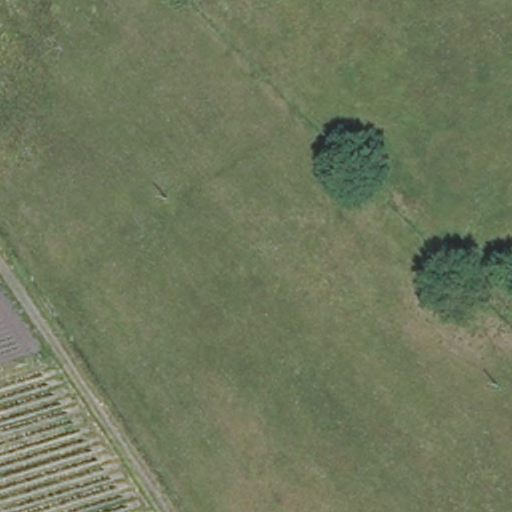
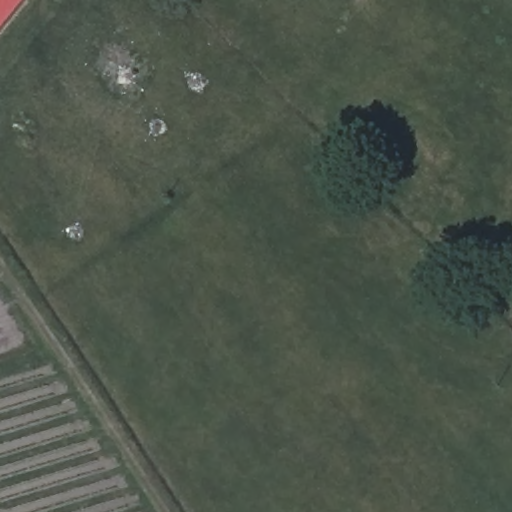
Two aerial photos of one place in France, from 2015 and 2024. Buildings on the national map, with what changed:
new [(0,35),(0,0),(29,0),(0,35)]

